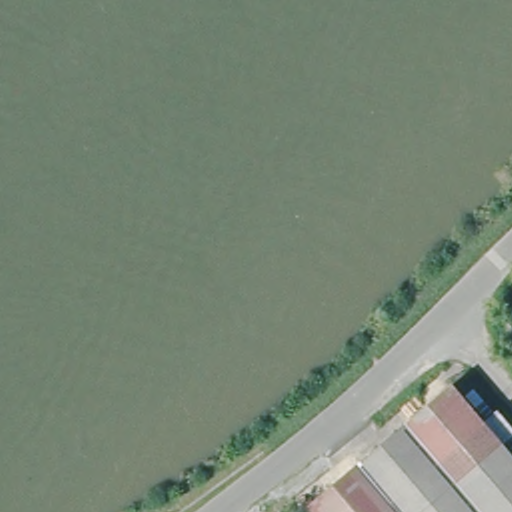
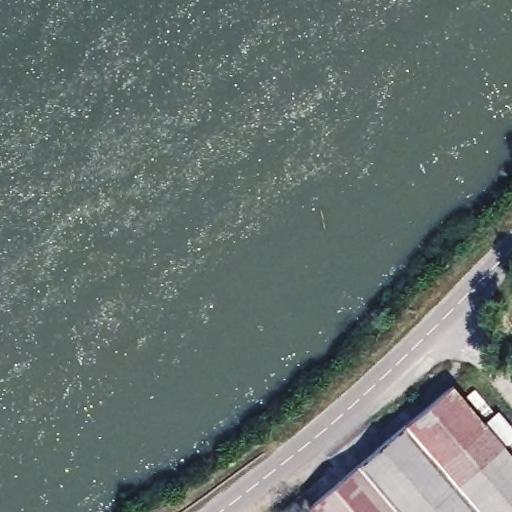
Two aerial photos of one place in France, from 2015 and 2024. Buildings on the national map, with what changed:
unchanged [(307,507),(454,383),(512,449),(512,512),(312,512),(307,507)]

